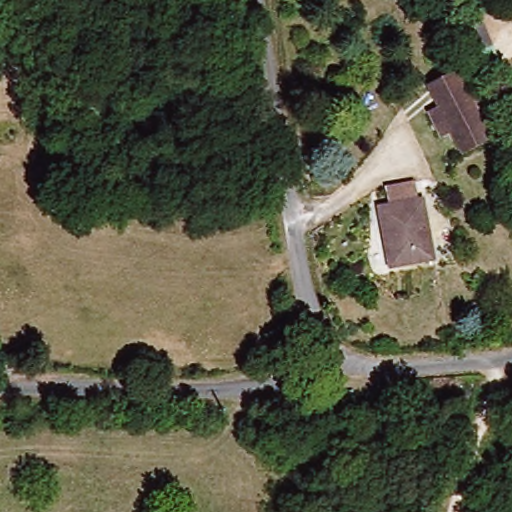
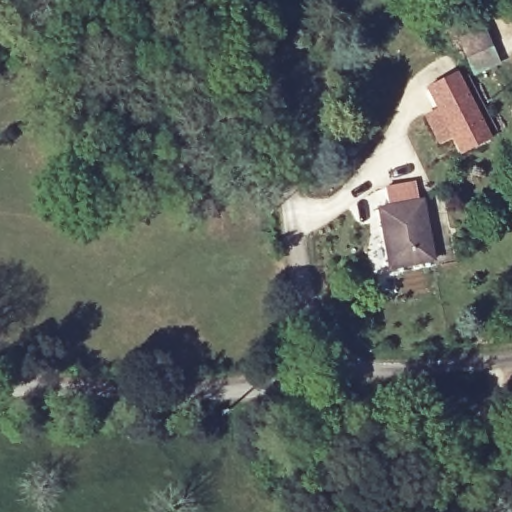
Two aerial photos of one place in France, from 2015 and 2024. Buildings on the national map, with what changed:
unchanged [(448,151),(420,91),(454,75),(481,135),(448,151)]
unchanged [(419,205),(428,262),(381,268),(372,212),(419,205)]

